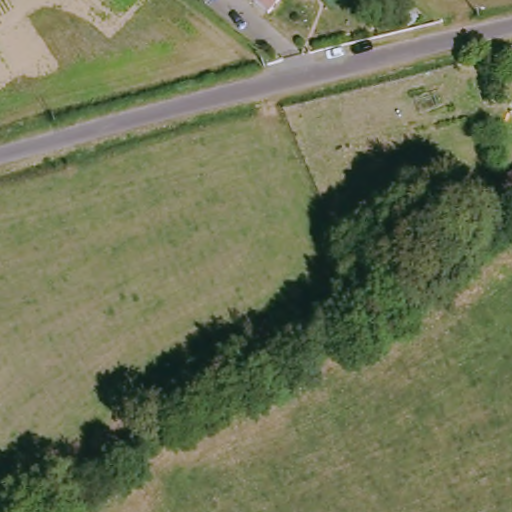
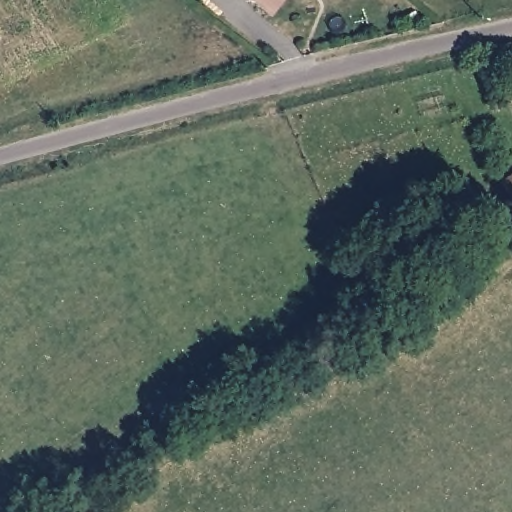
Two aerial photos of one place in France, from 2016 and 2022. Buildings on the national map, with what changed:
unchanged [(247,0),(280,0),(268,16),(247,0)]
unchanged [(512,176),(512,188),(507,180),(512,176)]

